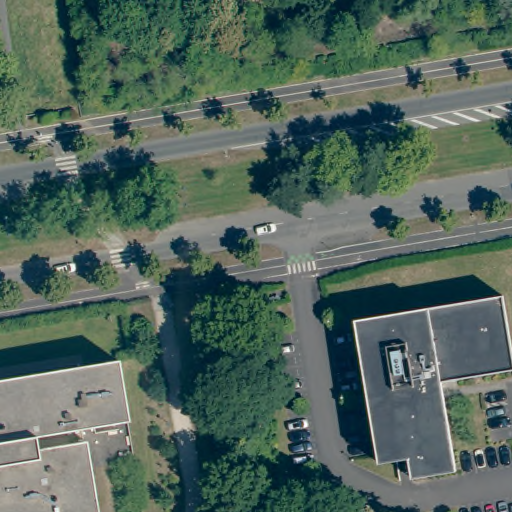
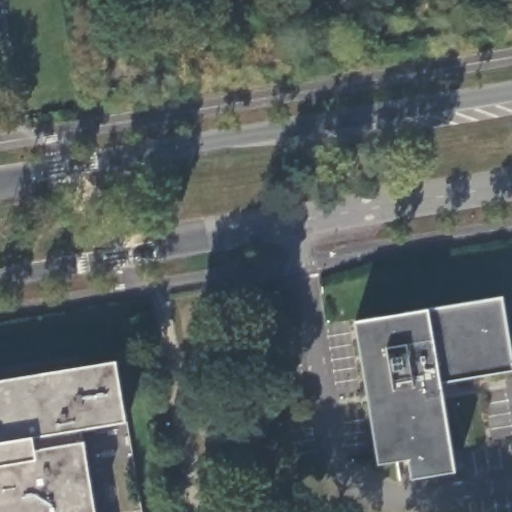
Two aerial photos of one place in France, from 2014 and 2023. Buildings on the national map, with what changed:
unchanged [(512,352),(512,367),(440,380),(441,381),(455,468),(411,476),(408,456),(378,461),(354,318),(502,292),(512,352)]
unchanged [(114,360),(125,422),(78,430),(80,441),(82,441),(94,512),(0,512),(0,379),(114,360)]

